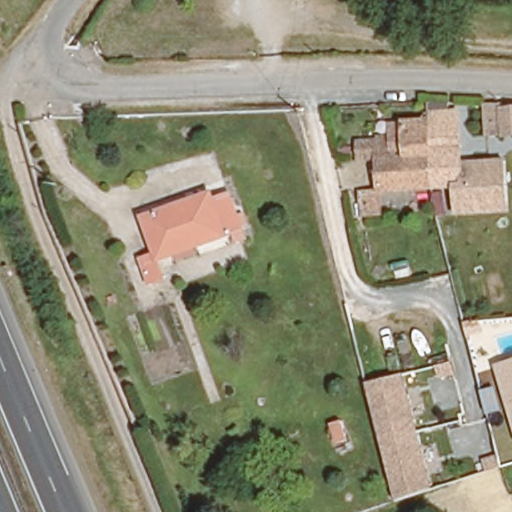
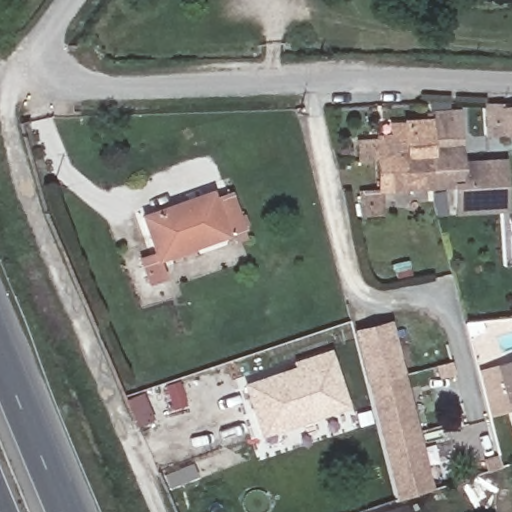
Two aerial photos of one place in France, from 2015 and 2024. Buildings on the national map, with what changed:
unchanged [(500,131),(484,131),(484,103),(500,103),(512,101),(512,132),(500,134),(500,131)]
unchanged [(427,118),(428,111),(453,110),(457,160),(458,184),(452,184),(431,185),(429,157),(427,118)]
unchanged [(357,133),(393,131),(393,119),(408,118),(427,118),(429,157),(406,158),(405,151),(388,152),(388,158),(378,159),(357,159),(357,133)]
unchanged [(379,187),(378,159),(388,158),(388,152),(405,151),(406,158),(429,157),(431,185),(385,188),(385,216),(366,217),(366,188),(379,188),(379,187)]
unchanged [(504,159),(508,213),(455,216),(452,184),(458,184),(457,160),(504,159)]
unchanged [(228,185),(245,233),(156,259),(137,210),(228,185)]
new [(352,330),(391,321),(404,375),(365,384),(352,330)]
new [(350,408),(259,439),(242,384),(292,367),(291,362),(330,349),(350,408)]
unchanged [(498,364),(512,359),(512,411),(498,364)]
unchanged [(434,491),(395,501),(365,384),(404,375),(434,491)]

